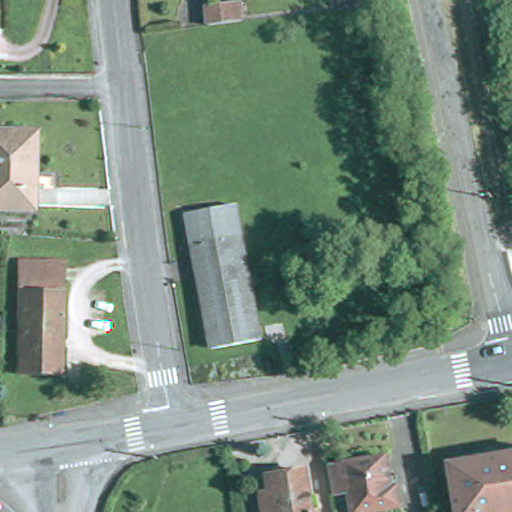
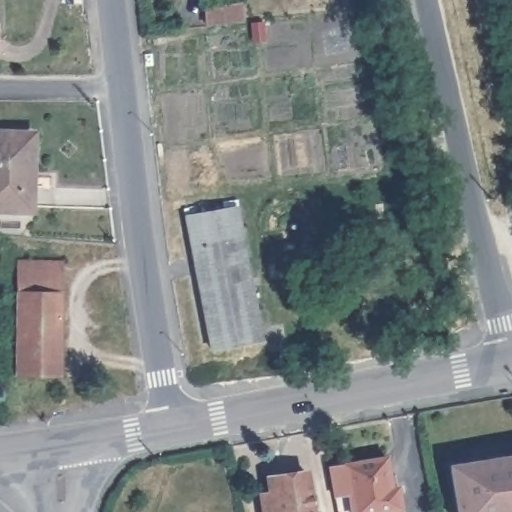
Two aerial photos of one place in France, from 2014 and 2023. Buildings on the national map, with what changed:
unchanged [(211,17),(210,0),(243,0),(245,15),(211,17)]
unchanged [(31,209),(0,208),(0,133),(32,134),(31,209)]
unchanged [(237,223),(258,326),(209,335),(189,232),(237,223)]
unchanged [(62,262),(60,375),(15,373),(17,261),(62,262)]
unchanged [(458,512),(450,465),(512,455),(512,512),(458,512)]
unchanged [(400,486),(402,507),(374,512),(336,512),(328,467),(387,458),(392,487),(400,486)]
unchanged [(276,491),(274,476),(307,470),(314,512),(266,512),(263,493),(276,491)]

